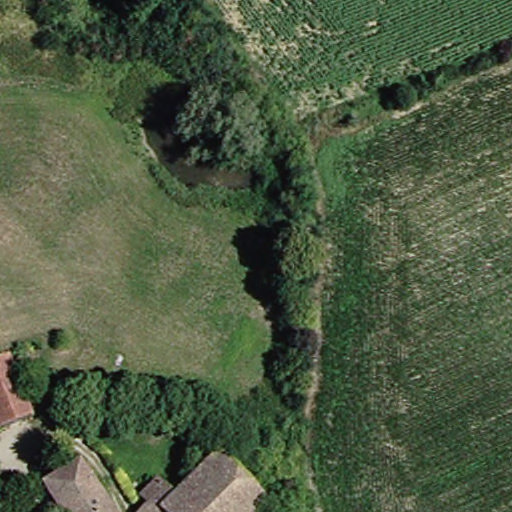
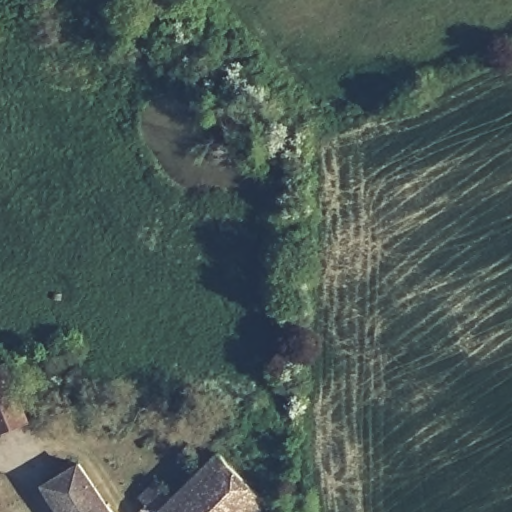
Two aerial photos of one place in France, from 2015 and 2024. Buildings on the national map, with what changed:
unchanged [(0,387),(17,427),(0,433),(0,387)]
unchanged [(127,499),(144,482),(163,499),(205,457),(258,506),(252,512),(132,512),(136,508),(127,499)]
unchanged [(70,469),(99,512),(49,512),(35,490),(70,469)]

